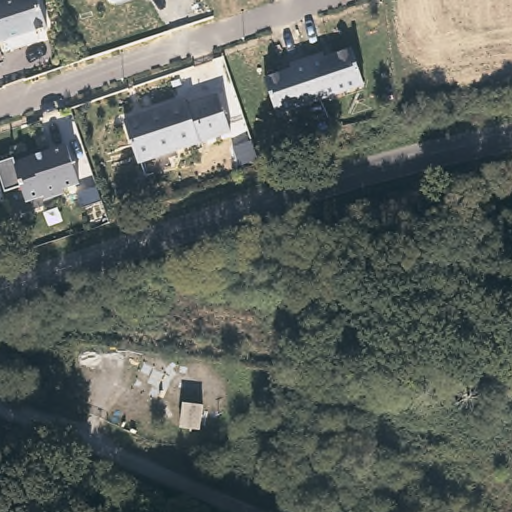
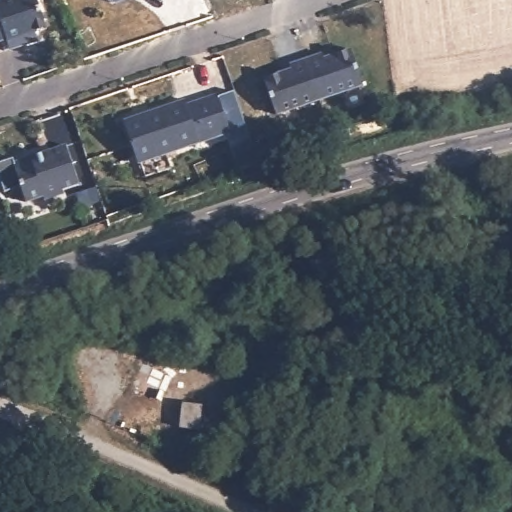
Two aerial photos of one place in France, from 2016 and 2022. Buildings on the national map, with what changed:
unchanged [(39,0),(48,29),(25,36),(27,45),(11,50),(0,12),(0,3),(10,0),(39,0)]
unchanged [(116,6),(110,3),(110,0),(133,0),(132,1),(116,6)]
unchanged [(324,56),(326,61),(353,52),(365,87),(322,102),(308,62),(324,56)]
unchanged [(278,117),(266,81),(294,72),(292,67),(308,62),(322,102),(278,117)]
unchanged [(187,102),(189,107),(220,97),(232,135),(140,166),(126,123),(187,102)]
unchanged [(15,164),(67,147),(80,185),(64,191),(65,195),(46,201),(45,198),(28,204),(22,188),(6,194),(0,176),(0,165),(14,160),(15,164)]
unchanged [(194,399),(191,426),(170,423),(172,397),(194,399)]

